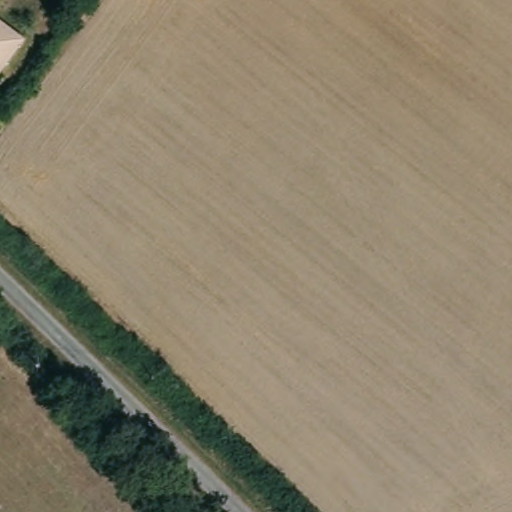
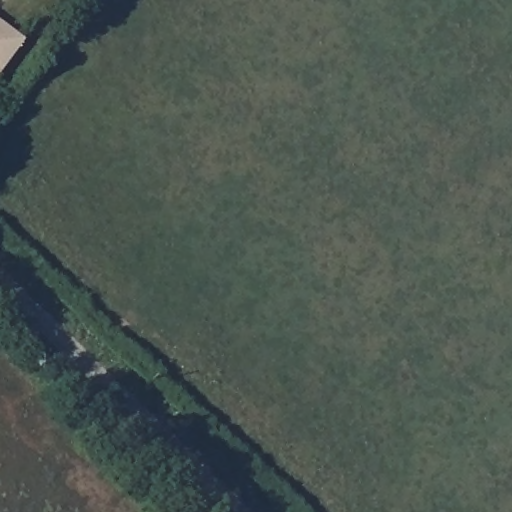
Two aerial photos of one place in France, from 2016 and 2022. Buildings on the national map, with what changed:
unchanged [(22,41),(0,70),(0,25),(22,41)]

